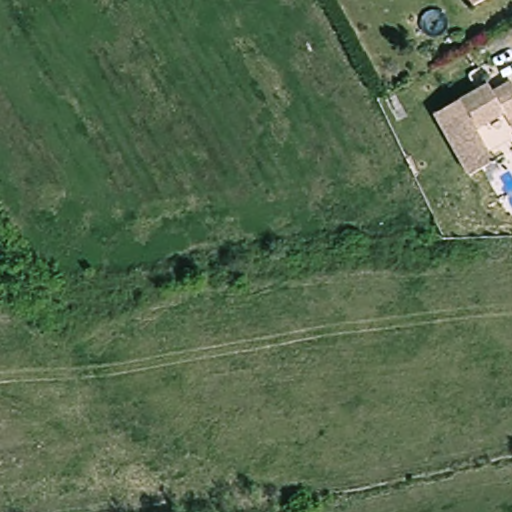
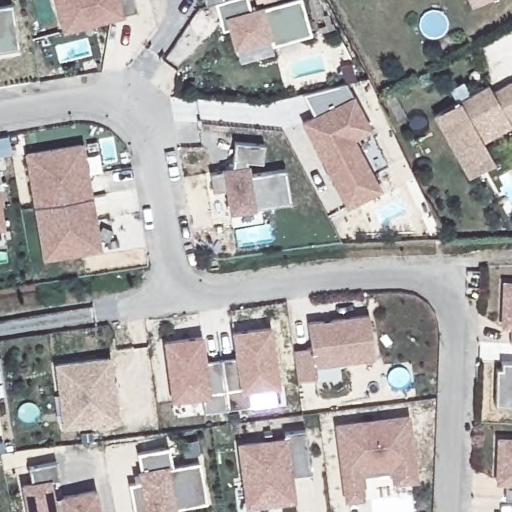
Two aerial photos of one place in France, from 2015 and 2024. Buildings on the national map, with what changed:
new [(54,0),(135,0),(138,11),(121,16),(63,32),(54,0)]
new [(251,9),(264,6),(288,0),(302,0),(311,33),(272,44),(271,39),(234,49),(228,28),(223,30),(214,2),(223,0),(249,0),(251,9)]
unchanged [(477,10),(472,0),(496,0),(477,10)]
new [(19,44),(19,47),(0,50),(0,5),(12,3),(19,44)]
new [(349,82),(373,131),(354,139),(383,190),(348,208),(301,121),(313,114),(303,93),(349,82)]
unchanged [(512,84),(512,120),(511,120),(506,110),(477,125),(488,144),(462,157),(439,113),(493,84),(497,92),(512,84)]
new [(233,168),(236,140),(266,143),(264,162),(248,160),(248,165),(249,173),(286,167),(292,201),(231,211),(228,188),(214,190),(211,172),(233,168)]
new [(90,181),(95,212),(101,250),(45,259),(27,153),(83,144),(90,181)]
new [(0,182),(0,172),(1,181),(0,182)]
new [(0,228),(0,194),(5,227),(0,228)]
new [(504,281),(512,282),(512,343),(511,343),(511,326),(502,326),(504,281)]
new [(369,313),(374,360),(314,367),(316,379),(299,381),(293,349),(310,347),(308,320),(369,313)]
new [(236,352),(233,332),(271,327),(279,386),(248,390),(251,405),(228,408),(221,355),(236,352)]
new [(203,336),(205,357),(221,355),(228,408),(204,411),(203,396),(173,400),(165,341),(203,336)]
new [(59,394),(55,364),(111,357),(119,422),(76,428),(64,429),(59,394)]
new [(497,367),(502,367),(502,360),(512,361),(512,406),(495,405),(497,367)]
new [(409,416),(417,481),(397,483),(394,467),(360,471),(364,499),(346,502),(337,425),(409,416)]
new [(285,439),(284,432),(306,429),(311,474),(291,477),(294,501),(247,508),(238,445),(285,439)]
new [(499,438),(512,438),(512,499),(506,499),(507,482),(498,482),(499,438)]
new [(134,474),(141,473),(138,453),(169,447),(173,466),(200,461),(208,502),(175,509),(176,512),(134,512),(129,484),(136,483),(136,482),(134,474)]
new [(29,467),(57,461),(60,479),(50,481),(54,498),(96,490),(100,512),(29,512),(23,485),(33,484),(29,467)]

